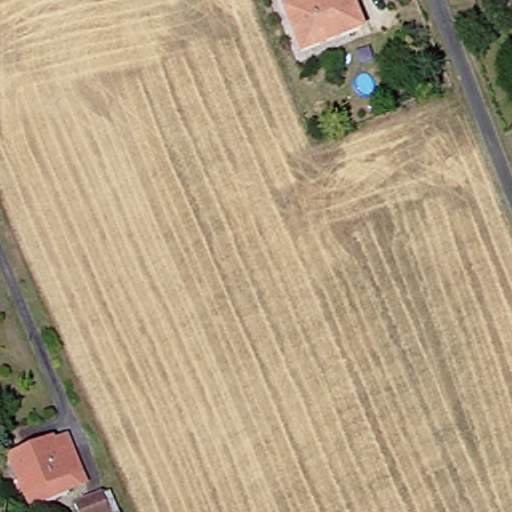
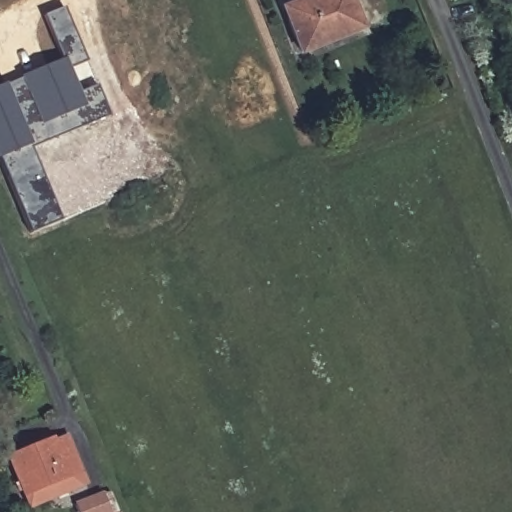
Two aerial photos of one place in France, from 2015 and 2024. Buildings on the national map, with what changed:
unchanged [(301,54),(284,11),(311,0),(350,0),(361,31),(301,54)]
new [(81,92),(97,84),(110,117),(30,149),(61,221),(28,234),(0,165),(0,84),(63,59),(44,16),(65,7),(89,61),(71,69),(81,92)]
unchanged [(10,456),(45,442),(46,446),(68,437),(86,483),(29,506),(10,456)]
unchanged [(77,512),(75,506),(101,494),(109,512),(77,512)]

